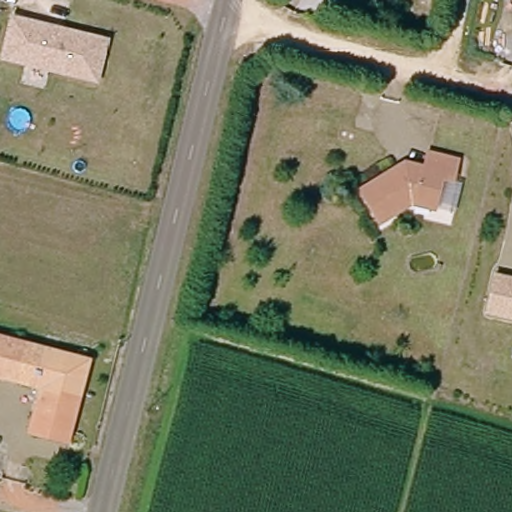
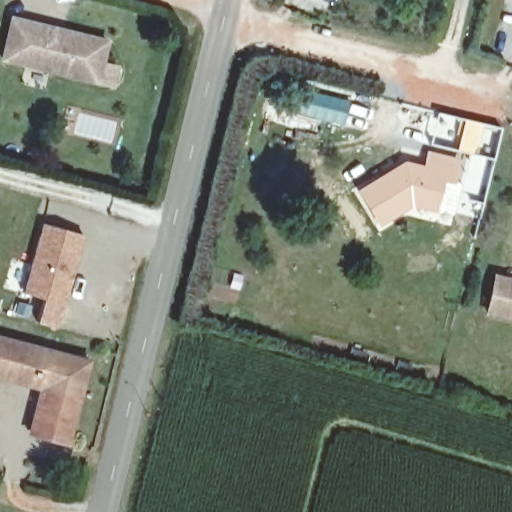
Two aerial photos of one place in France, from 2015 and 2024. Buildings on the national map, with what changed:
unchanged [(105,37),(95,78),(1,56),(10,15),(105,37)]
unchanged [(364,192),(400,170),(411,175),(415,166),(427,169),(430,152),(460,160),(455,181),(443,179),(436,209),(412,204),(381,223),(364,192)]
new [(85,235),(64,305),(20,293),(42,223),(85,235)]
unchanged [(482,316),(492,272),(512,276),(512,322),(482,316)]
unchanged [(40,393),(0,382),(0,339),(87,365),(65,447),(37,440),(27,436),(34,413),(40,393)]

